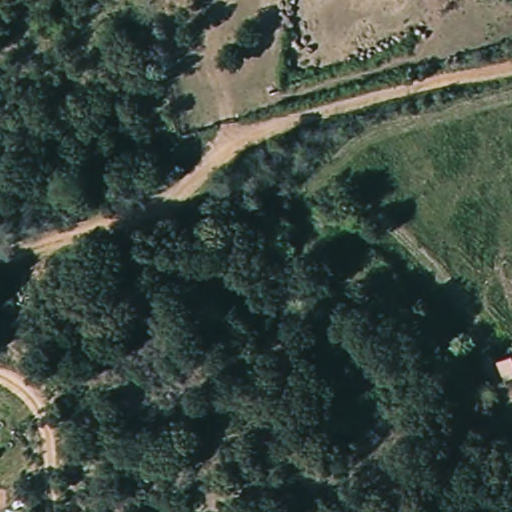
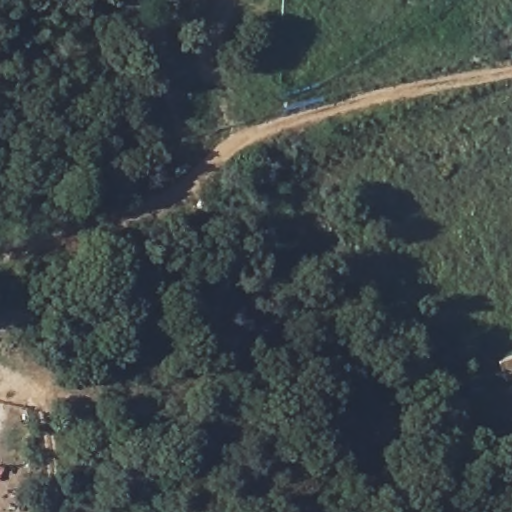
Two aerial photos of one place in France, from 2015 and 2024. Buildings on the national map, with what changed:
unchanged [(512,367),(500,371),(496,359),(512,355),(512,367)]

